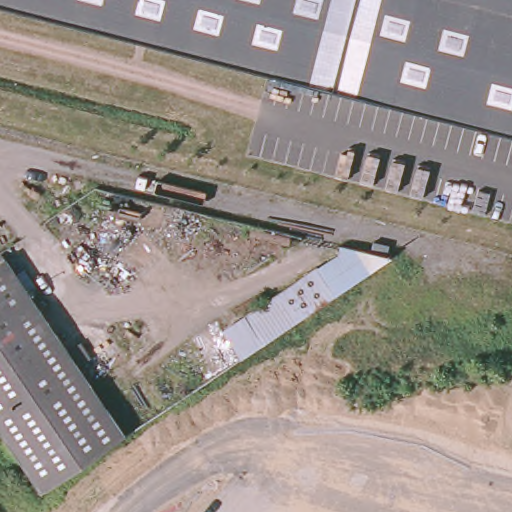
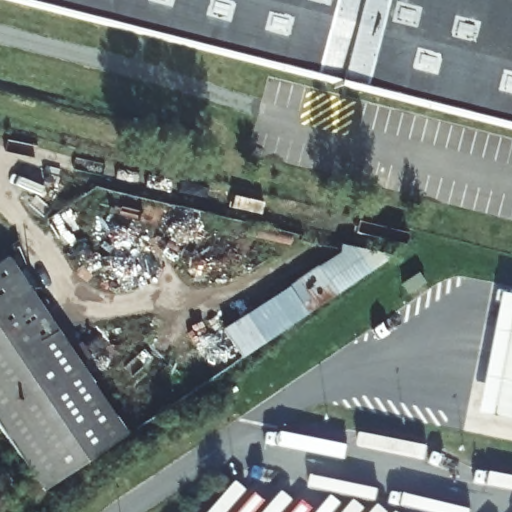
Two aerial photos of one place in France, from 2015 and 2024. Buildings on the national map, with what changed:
unchanged [(512,0),(512,128),(12,0),(512,0)]
unchanged [(248,359),(242,363),(216,324),(343,243),(386,254),(398,260),(248,359)]
unchanged [(127,431),(40,488),(0,427),(0,262),(7,257),(127,431)]
new [(503,295),(512,296),(512,422),(477,417),(503,295)]

